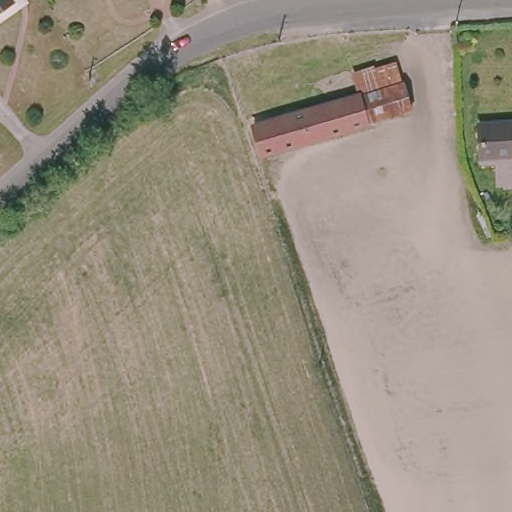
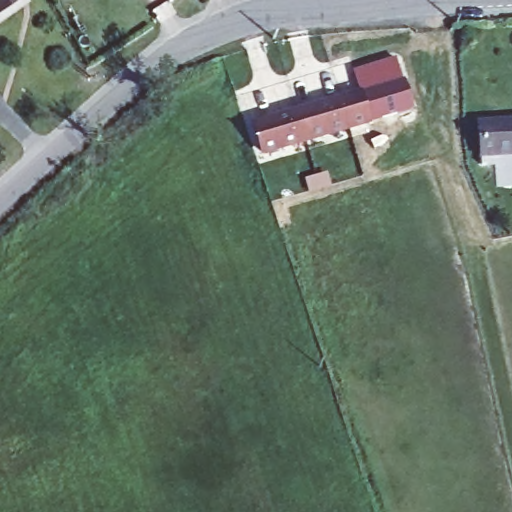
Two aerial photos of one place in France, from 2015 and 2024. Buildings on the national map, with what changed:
unchanged [(0,10),(0,0),(11,0),(12,1),(0,10)]
unchanged [(397,54),(405,80),(360,92),(352,66),(397,54)]
unchanged [(360,92),(405,80),(413,107),(368,120),(360,92)]
unchanged [(252,123),(360,92),(368,120),(260,150),(252,123)]
unchanged [(484,145),(483,114),(512,112),(512,144),(484,145)]

